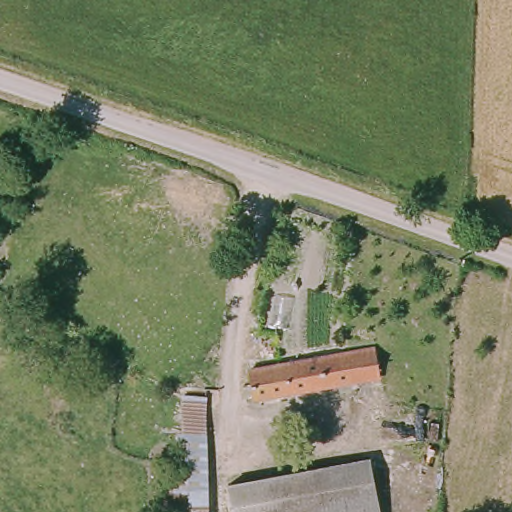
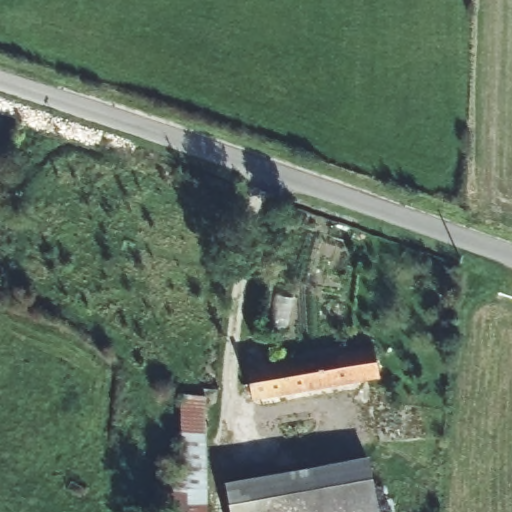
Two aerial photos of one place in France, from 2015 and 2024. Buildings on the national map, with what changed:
unchanged [(376,351),(378,364),(380,372),(248,396),(246,375),(376,351)]
unchanged [(179,482),(181,398),(203,398),(205,387),(217,388),(210,483),(209,512),(159,512),(160,482),(179,482)]
unchanged [(366,457),(370,482),(375,512),(310,512),(306,494),(232,508),(229,485),(366,457)]
unchanged [(310,512),(233,512),(232,508),(306,494),(310,512)]

